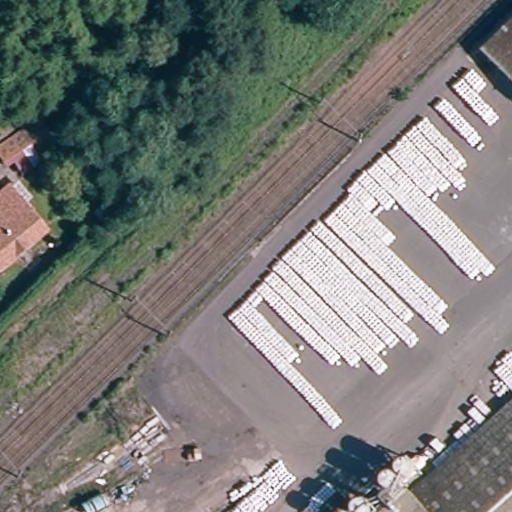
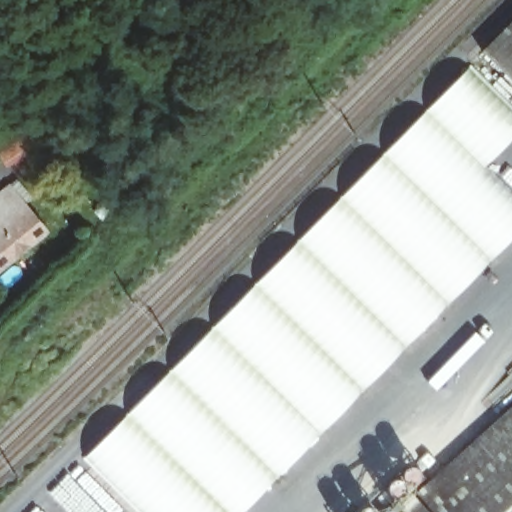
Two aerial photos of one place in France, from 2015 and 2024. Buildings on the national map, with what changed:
unchanged [(512,19),(512,80),(481,49),(512,19)]
new [(512,105),(512,140),(486,167),(512,194),(512,241),(363,390),(320,435),(244,512),(138,512),(83,457),(471,63),(512,105)]
unchanged [(50,141),(16,163),(5,150),(40,128),(50,141)]
unchanged [(0,258),(0,194),(8,189),(40,225),(0,258)]
unchanged [(410,495),(512,404),(512,512),(386,512),(407,493),(410,495)]

